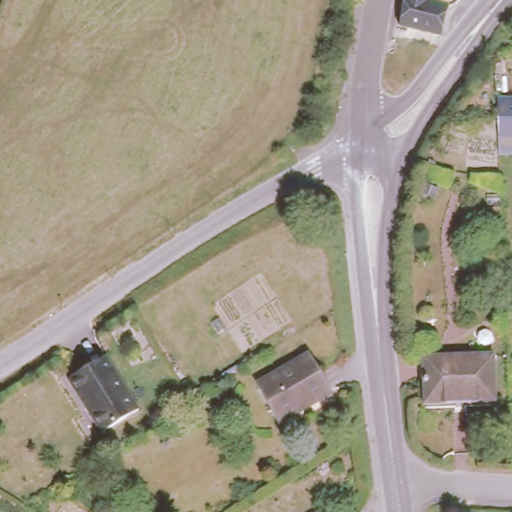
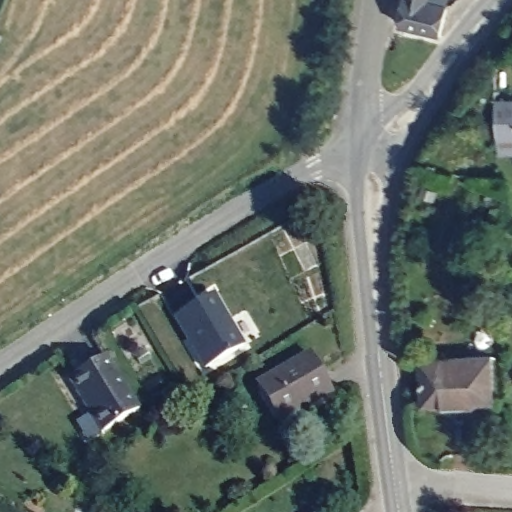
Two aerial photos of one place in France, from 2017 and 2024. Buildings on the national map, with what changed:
unchanged [(448,2),(440,31),(398,22),(401,0),(440,0),(448,2)]
unchanged [(495,152),(495,92),(512,92),(512,153),(495,152)]
new [(211,294),(242,346),(202,370),(171,319),(211,294)]
unchanged [(310,350),(335,390),(306,408),(303,402),(285,413),(263,378),(310,350)]
unchanged [(71,379),(107,357),(143,412),(104,429),(71,379)]
unchanged [(495,357),(498,402),(429,404),(426,360),(495,357)]

